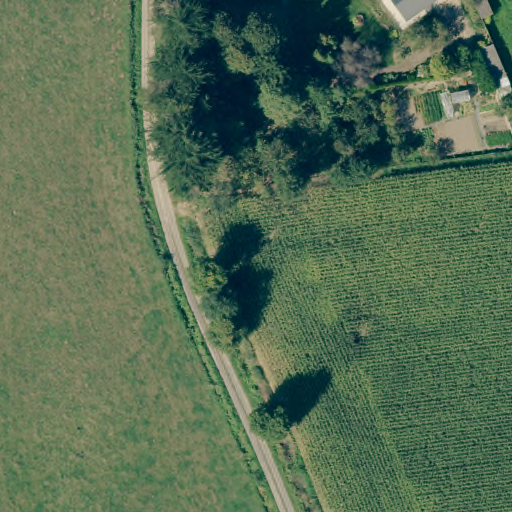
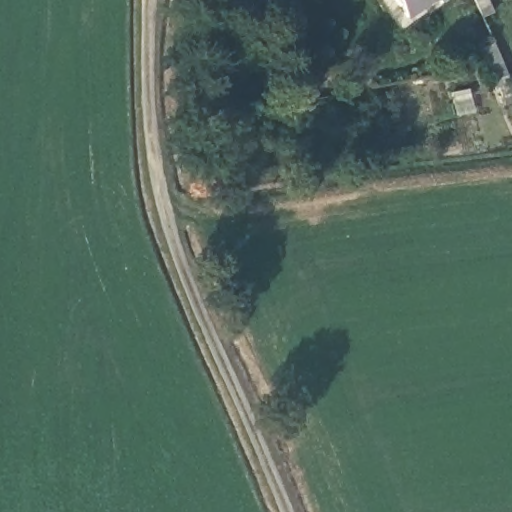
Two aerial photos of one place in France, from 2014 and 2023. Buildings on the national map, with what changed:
unchanged [(404,18),(392,0),(432,0),(404,18)]
unchanged [(491,15),(482,18),(474,0),(485,0),(491,15)]

